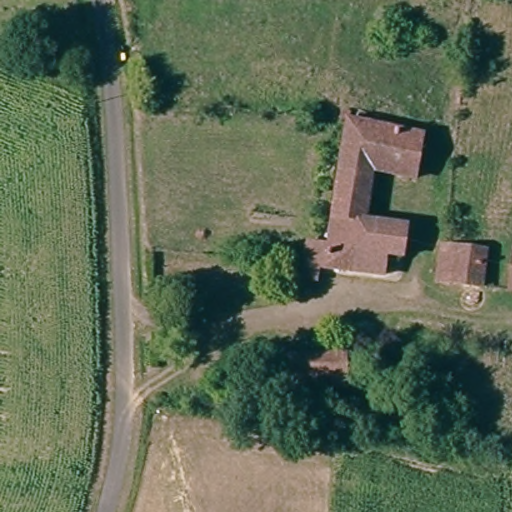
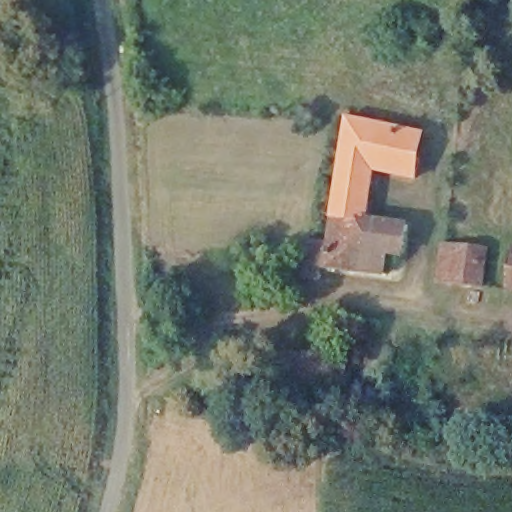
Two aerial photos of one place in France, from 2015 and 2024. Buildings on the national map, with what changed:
unchanged [(412,178),(363,175),(359,219),(406,223),(407,254),(387,256),(386,268),(316,264),(315,273),(300,272),(300,256),(302,234),(325,234),(338,128),(327,128),(328,117),(328,111),(340,111),(340,116),(414,123),(412,178)]
unchanged [(440,278),(442,243),(485,247),(480,280),(440,278)]
unchanged [(511,282),(512,268),(512,282),(511,282)]
unchanged [(341,384),(285,381),(286,347),(342,350),(341,384)]

